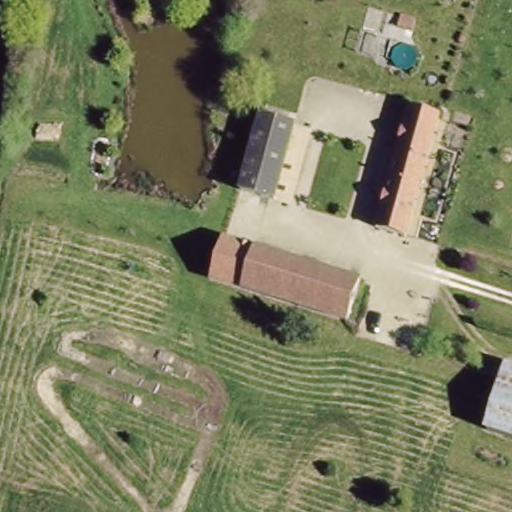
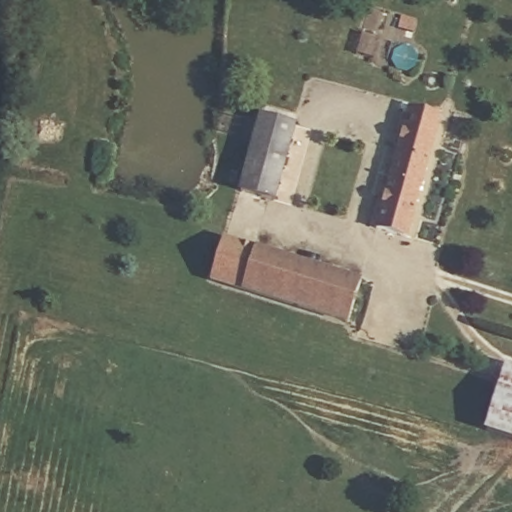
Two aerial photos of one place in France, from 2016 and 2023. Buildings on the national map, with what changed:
unchanged [(376,223),(409,103),(437,113),(440,114),(407,233),(376,223)]
unchanged [(256,111),(292,121),(271,196),(235,185),(256,111)]
unchanged [(206,285),(219,244),(251,254),(239,295),(206,285)]
unchanged [(251,254),(355,287),(343,327),(239,295),(251,254)]
unchanged [(478,433),(499,365),(512,369),(512,443),(478,433)]

